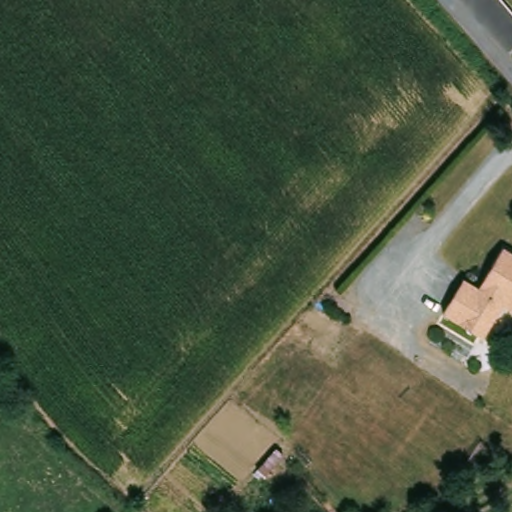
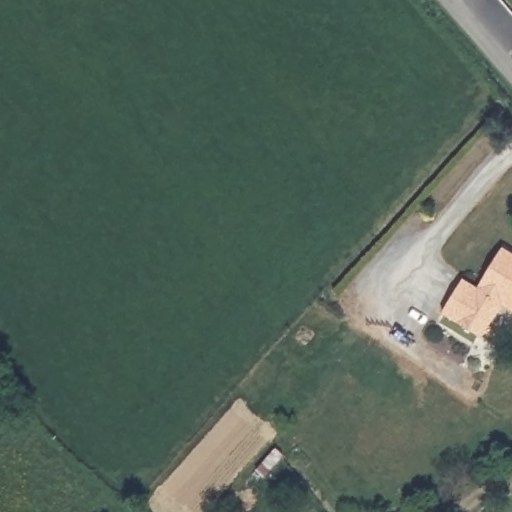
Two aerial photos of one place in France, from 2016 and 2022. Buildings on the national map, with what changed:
unchanged [(479,284),(507,248),(512,252),(512,308),(505,303),(485,334),(446,308),(469,276),(479,284)]

